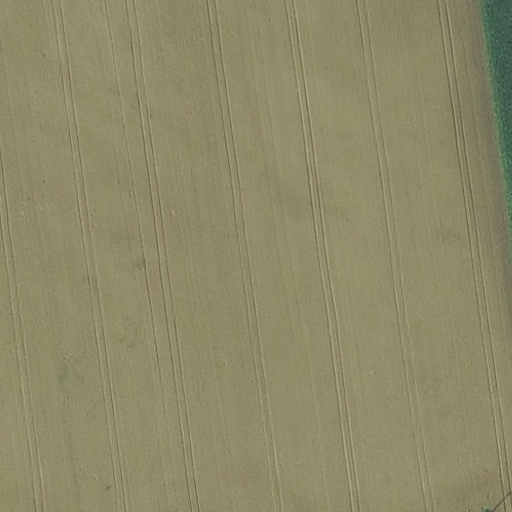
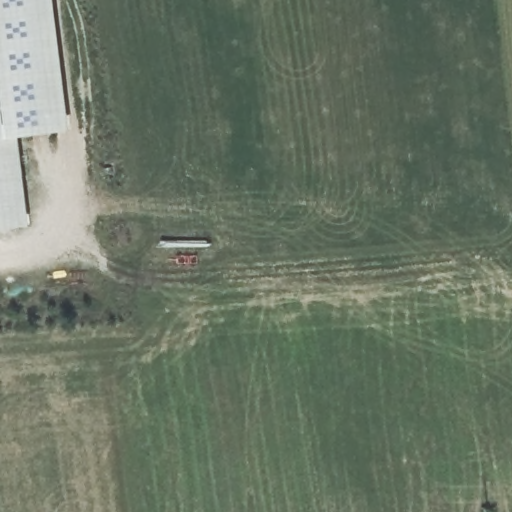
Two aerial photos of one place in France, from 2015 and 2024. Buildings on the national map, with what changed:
new [(72,130),(20,136),(30,226),(0,229),(0,0),(55,0),(72,130)]

